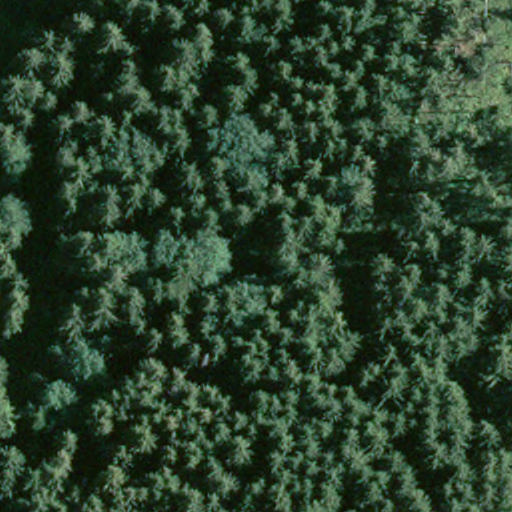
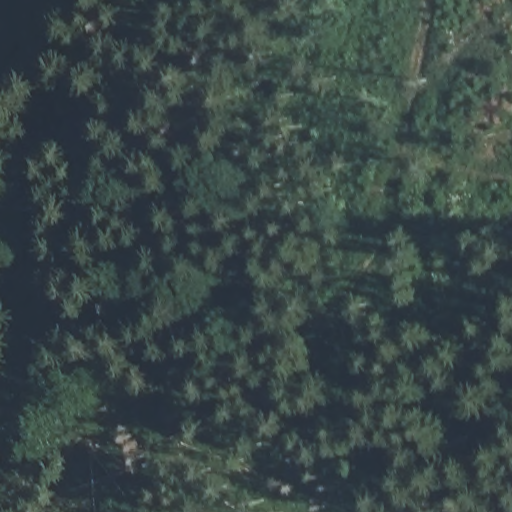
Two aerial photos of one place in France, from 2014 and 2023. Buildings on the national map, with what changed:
[]

